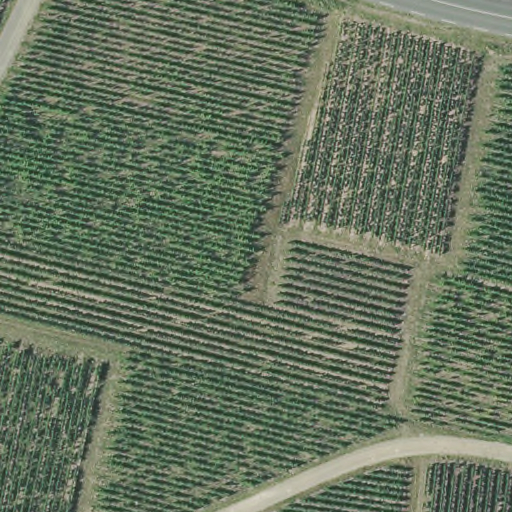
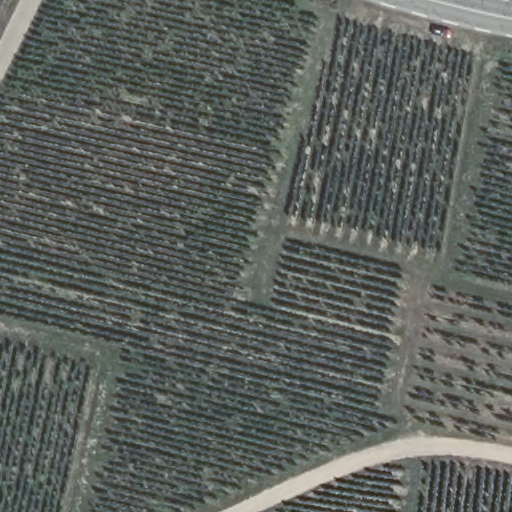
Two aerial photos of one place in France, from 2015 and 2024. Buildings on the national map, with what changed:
[]

